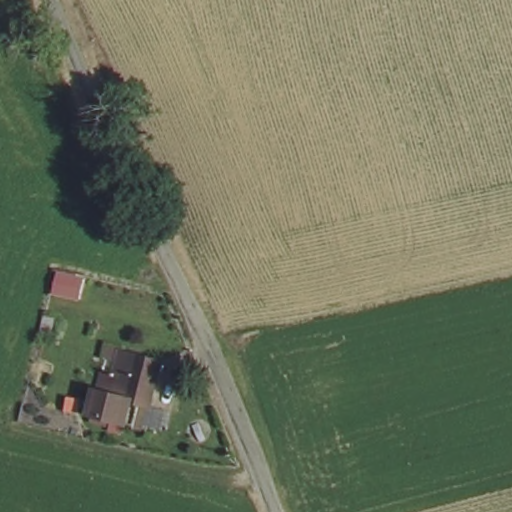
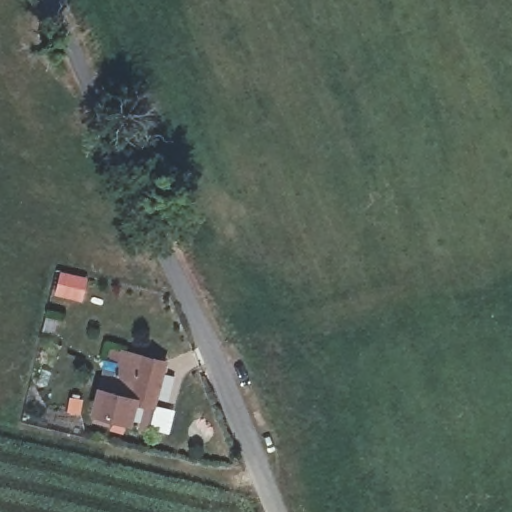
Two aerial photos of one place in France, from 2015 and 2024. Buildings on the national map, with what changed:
unchanged [(138,426),(94,415),(99,389),(116,393),(125,351),(168,361),(161,402),(153,401),(148,429),(138,426)]

